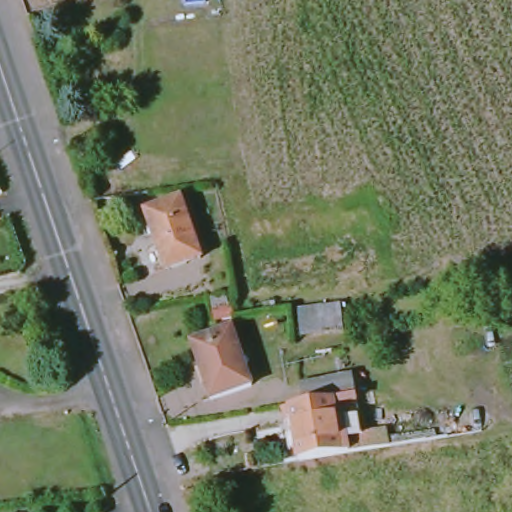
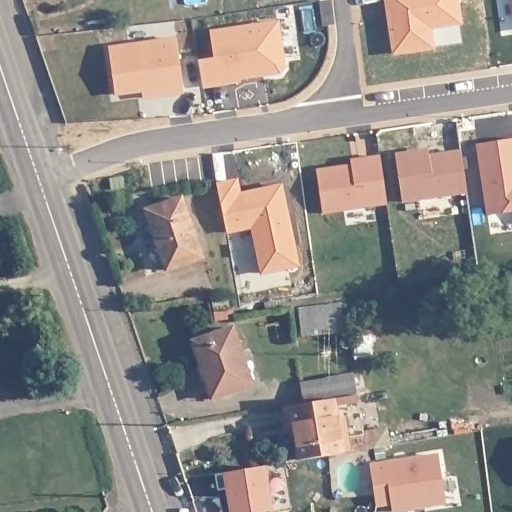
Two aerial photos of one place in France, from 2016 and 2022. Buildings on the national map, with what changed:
new [(459,20),(428,24),(431,45),(393,51),(385,0),(456,0),(459,20)]
new [(275,18),(278,38),(283,65),(278,71),(238,77),(239,79),(217,82),(209,29),(275,18)]
new [(141,89),(114,93),(107,47),(175,37),(182,91),(165,93),(142,97),(141,89)]
new [(512,221),(489,225),(476,141),(512,136),(512,221)]
new [(416,148),(417,154),(459,149),(464,190),(400,199),(393,152),(416,148)]
new [(358,162),(357,156),(378,153),(385,201),(322,210),(316,168),(358,162)]
new [(300,267),(261,275),(250,231),(227,235),(220,205),(215,183),(237,179),(239,192),(282,184),(300,267)]
unchanged [(176,196),(198,256),(162,267),(142,208),(176,196)]
demolished [(349,264),(245,279),(241,249),(345,235),(349,264)]
unchanged [(228,301),(229,311),(213,313),(212,303),(228,301)]
unchanged [(340,327),(297,332),(294,311),(337,306),(340,327)]
unchanged [(228,321),(249,378),(208,393),(187,335),(228,321)]
unchanged [(302,381),(352,373),(357,395),(305,403),(302,381)]
unchanged [(357,395),(364,434),(342,438),(344,451),(299,459),(290,405),(305,403),(357,395)]
new [(392,511),(391,504),(376,506),(370,464),(438,453),(445,504),(392,511)]
new [(230,512),(222,473),(265,466),(272,510),(262,512),(230,512)]

